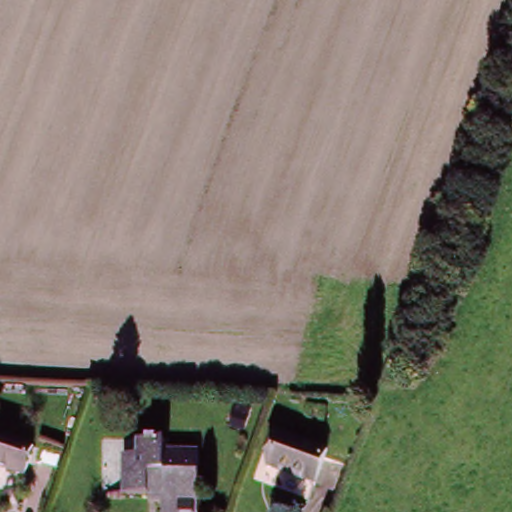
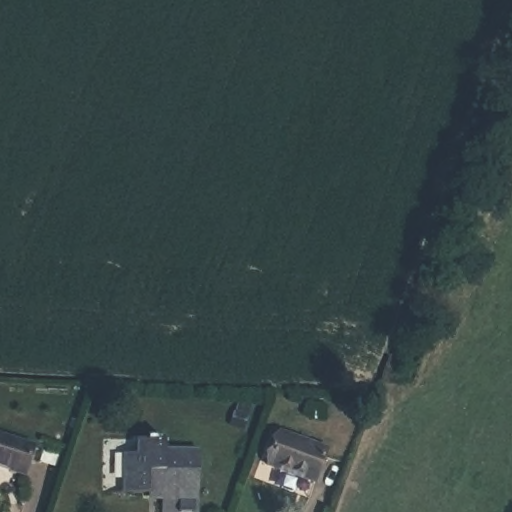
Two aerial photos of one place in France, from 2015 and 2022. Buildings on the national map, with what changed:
unchanged [(0,433),(25,440),(18,467),(0,462),(0,433)]
unchanged [(322,450),(313,479),(268,463),(278,435),(322,450)]
unchanged [(118,496),(120,453),(132,453),(132,439),(163,439),(163,448),(195,451),(194,512),(160,512),(160,499),(118,496)]

